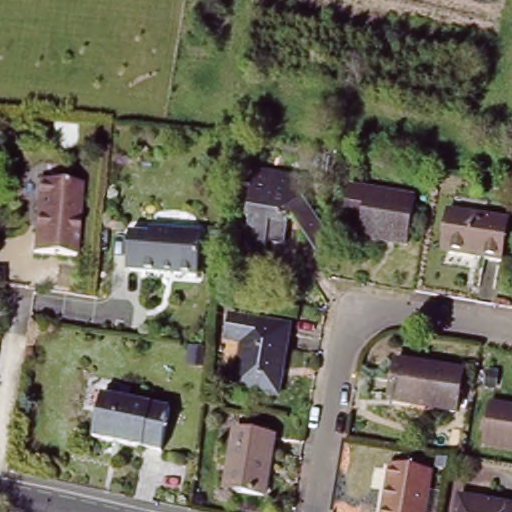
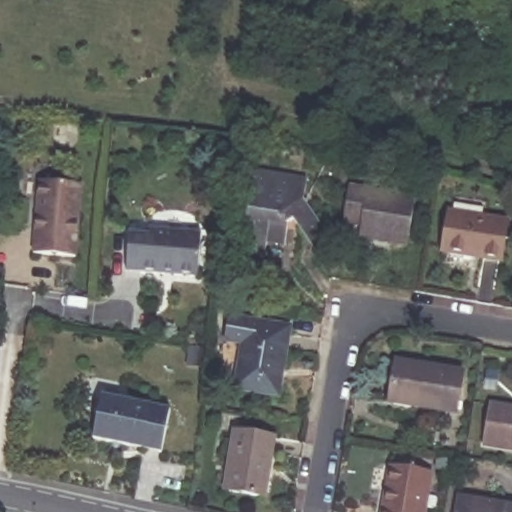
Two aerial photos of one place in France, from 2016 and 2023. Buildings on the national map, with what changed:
unchanged [(317,258),(294,225),(290,220),(287,223),(288,224),(285,245),(267,242),(265,254),(245,252),(250,220),(247,219),(251,188),(246,188),(249,170),(305,178),(302,201),(312,213),(322,228),(317,258)]
unchanged [(82,184),(75,257),(34,253),(40,180),(82,184)]
unchanged [(407,249),(359,241),(361,229),(344,226),(349,192),(414,201),(407,249)]
unchanged [(502,266),(444,257),(449,217),(509,227),(502,266)]
unchanged [(150,238),(151,232),(203,236),(199,281),(127,274),(130,236),(150,238)]
unchanged [(248,326),(292,332),(281,403),(237,395),(245,349),(224,346),(227,328),(247,332),(248,326)]
unchanged [(455,415),(419,410),(419,405),(388,399),(394,363),(462,375),(455,415)]
unchanged [(174,412),(165,455),(97,441),(106,398),(174,412)]
unchanged [(480,448),(486,407),(512,411),(512,453),(480,448)]
unchanged [(262,498),(224,492),(233,433),(272,439),(262,498)]
unchanged [(427,512),(387,512),(392,469),(433,475),(427,512)]
unchanged [(458,500),(512,509),(512,512),(456,512),(458,500)]

